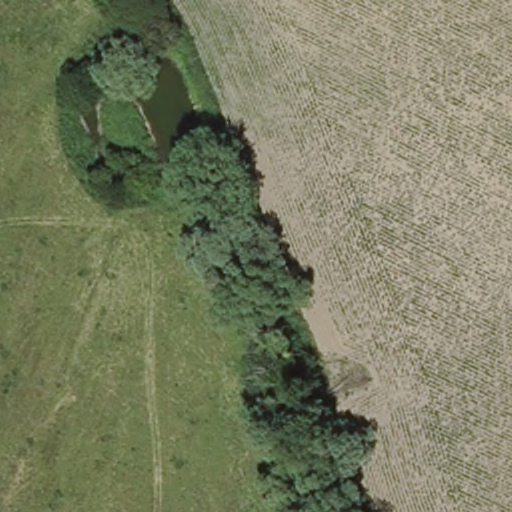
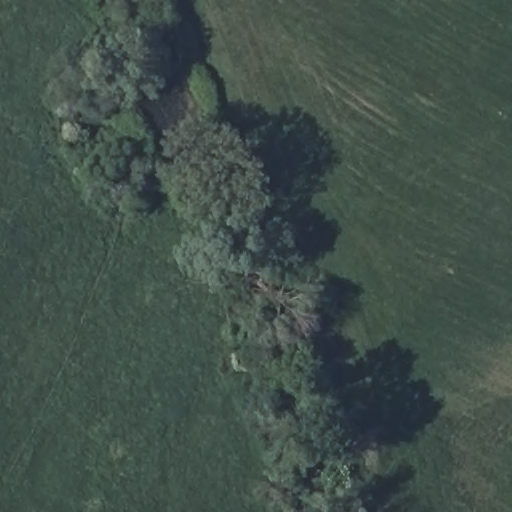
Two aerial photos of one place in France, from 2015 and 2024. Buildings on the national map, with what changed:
[]

